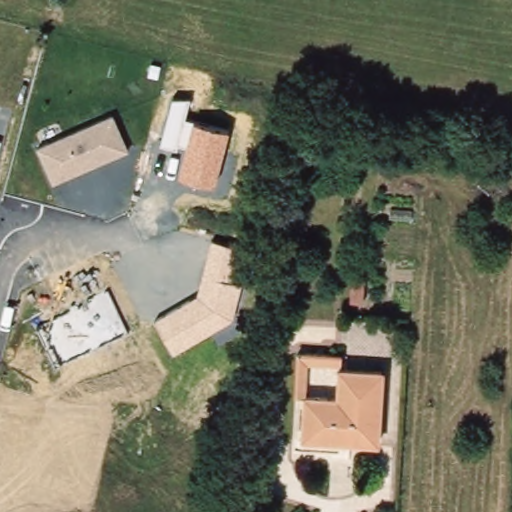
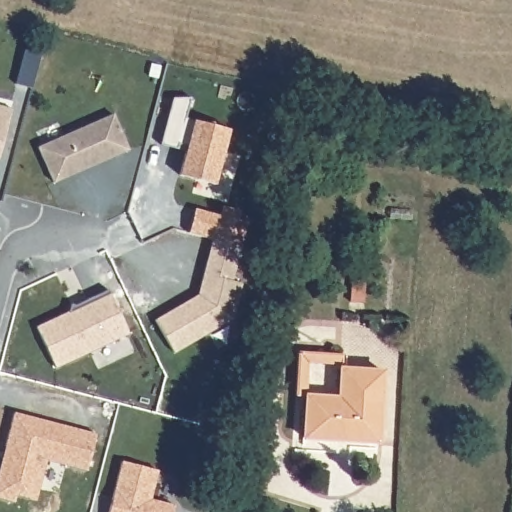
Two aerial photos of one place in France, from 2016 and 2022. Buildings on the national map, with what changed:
unchanged [(191,98),(186,118),(230,130),(217,186),(179,176),(189,143),(179,142),(177,150),(159,145),(173,99),(191,98)]
unchanged [(128,150),(53,183),(36,145),(112,112),(128,150)]
unchanged [(196,296),(211,242),(249,251),(232,320),(173,354),(156,321),(196,296)]
unchanged [(56,365),(35,323),(108,288),(128,331),(56,365)]
unchanged [(339,356),(339,368),(383,370),(379,443),(305,437),(307,400),(298,399),(300,352),(339,356)]
new [(97,434),(88,470),(48,460),(37,500),(17,495),(15,502),(0,498),(0,471),(15,413),(97,434)]
new [(150,498),(173,504),(170,512),(109,512),(121,460),(156,470),(150,498)]

